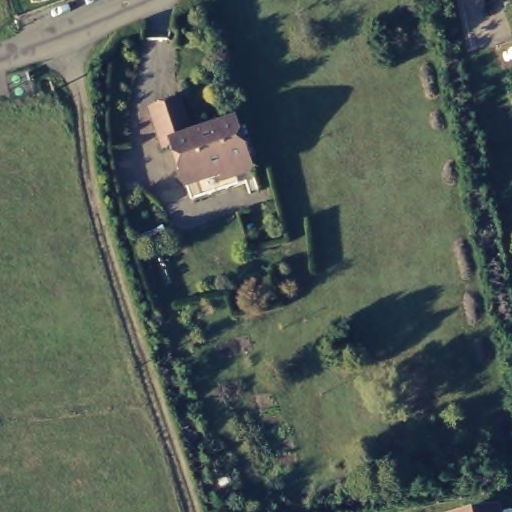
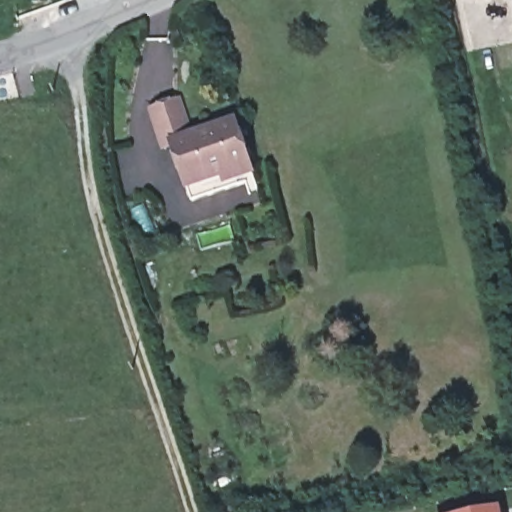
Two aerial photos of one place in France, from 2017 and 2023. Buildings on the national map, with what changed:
unchanged [(255,175),(193,196),(174,140),(164,143),(151,105),(180,95),(193,132),(236,117),(255,175)]
unchanged [(494,512),(468,512),(493,506),(494,512)]

